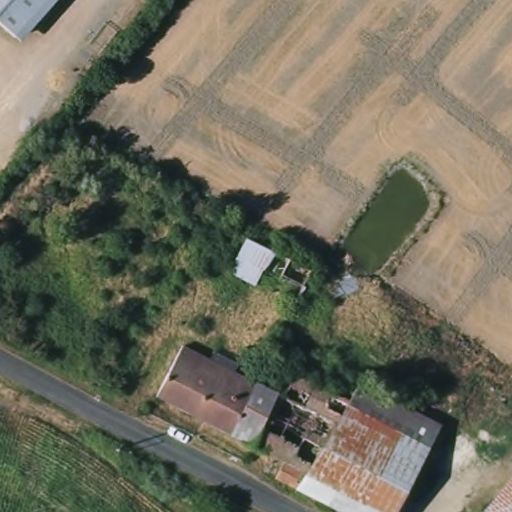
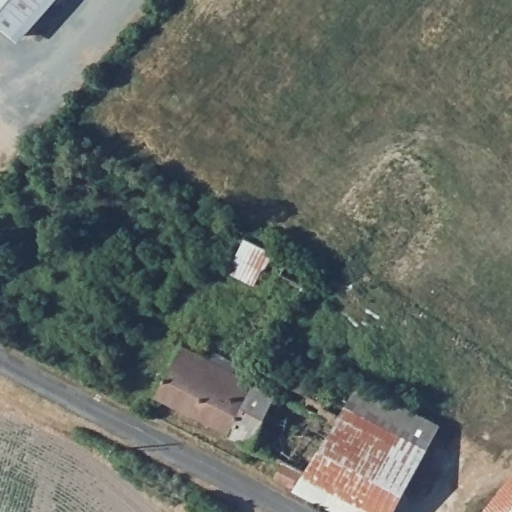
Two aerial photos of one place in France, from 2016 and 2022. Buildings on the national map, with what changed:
unchanged [(35,27),(4,0),(58,0),(35,27)]
unchanged [(248,239),(313,274),(294,309),(229,278),(248,239)]
unchanged [(273,486),(281,469),(158,405),(183,356),(258,393),(261,388),(278,396),(276,402),(283,406),(295,384),(346,411),(345,416),(422,455),(393,512),(328,512),(294,496),(273,486)]
unchanged [(489,512),(512,485),(512,512),(489,512)]

